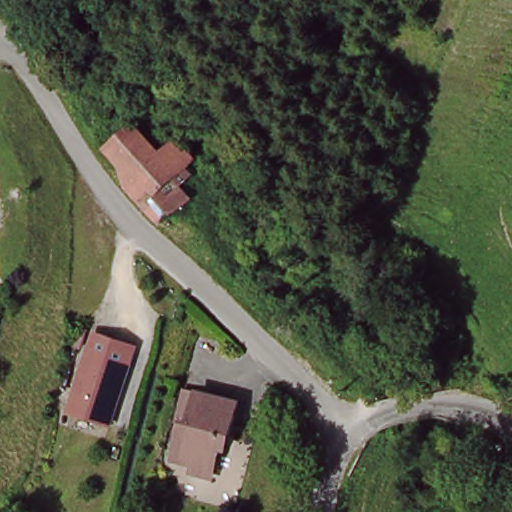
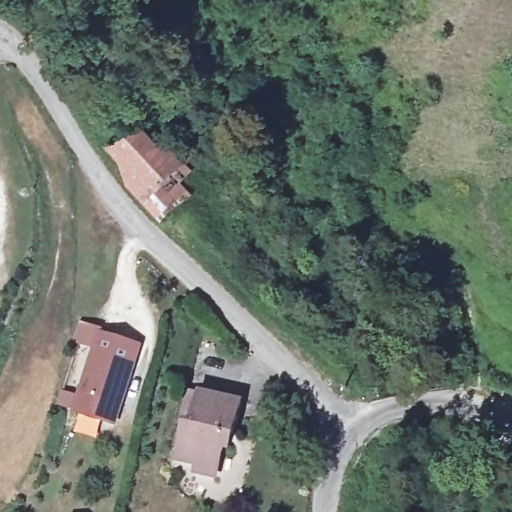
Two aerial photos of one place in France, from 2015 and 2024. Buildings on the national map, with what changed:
unchanged [(157,227),(100,146),(127,122),(156,149),(178,135),(192,166),(183,179),(187,200),(157,227)]
unchanged [(138,348),(110,427),(70,412),(97,336),(138,348)]
unchanged [(238,407),(231,440),(225,439),(216,475),(174,464),(182,428),(175,425),(182,395),(238,407)]

